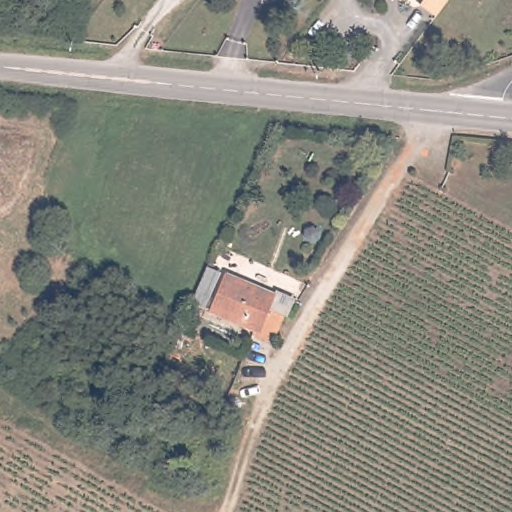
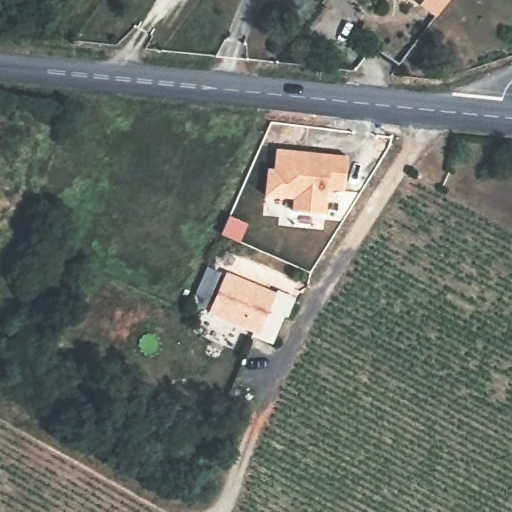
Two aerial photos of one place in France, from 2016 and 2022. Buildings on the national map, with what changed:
unchanged [(440,16),(424,4),(427,0),(451,0),(440,16)]
new [(267,167),(273,168),(276,148),(305,152),(309,156),(316,157),(316,152),(347,156),(343,191),(327,189),(324,214),(291,210),(293,197),(264,195),(267,167)]
demolished [(105,229),(188,263),(180,283),(135,265),(133,271),(123,267),(126,261),(97,248),(105,229)]
unchanged [(250,319),(247,323),(208,308),(222,274),(256,287),(270,293),(266,304),(258,322),(250,319)]

